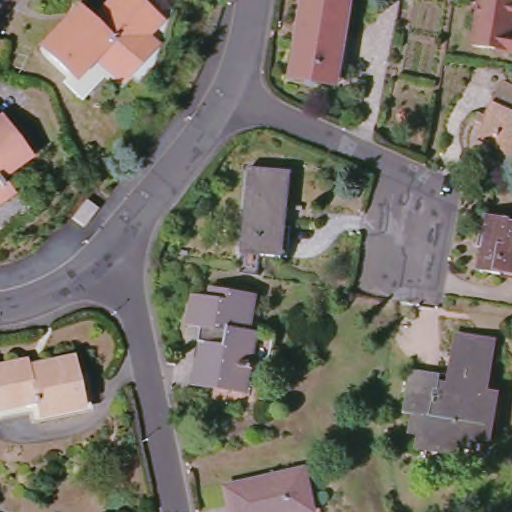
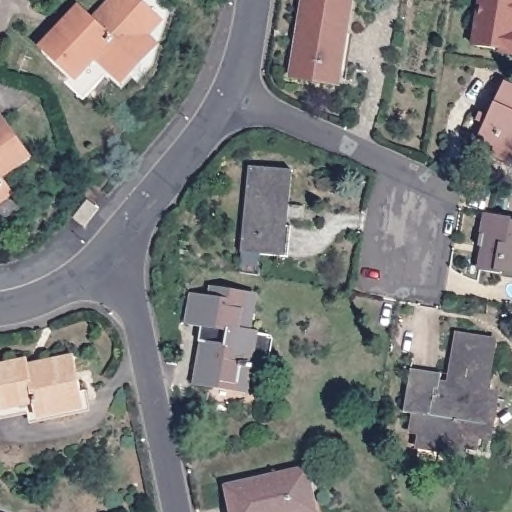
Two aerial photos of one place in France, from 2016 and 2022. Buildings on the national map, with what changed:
unchanged [(113,77),(108,72),(90,55),(80,67),(75,63),(66,72),(62,68),(60,71),(40,52),(42,49),(38,45),(63,19),(67,22),(77,12),(90,25),(114,0),(128,0),(140,11),(138,13),(146,21),(132,36),(137,41),(143,46),(113,77)]
unchanged [(291,77),(294,61),(304,0),(352,0),(341,69),(339,84),(291,77)]
unchanged [(478,51),(487,0),(512,0),(512,56),(478,51)]
unchanged [(491,155),(495,147),(478,139),(505,82),(512,85),(512,165),(491,155)]
unchanged [(14,146),(19,154),(0,167),(0,121),(16,144),(14,146)]
unchanged [(288,170),(283,226),(291,226),(289,257),(242,253),(250,167),(288,170)]
unchanged [(0,190),(0,186),(2,189),(0,190)]
unchanged [(99,209),(85,227),(74,217),(87,200),(99,209)]
unchanged [(512,218),(512,272),(505,271),(505,274),(482,271),(486,247),(480,247),(482,235),(484,235),(487,214),(512,218)]
unchanged [(210,302),(211,293),(256,301),(250,337),(257,337),(248,392),(196,383),(202,346),(210,347),(212,332),(187,327),(191,300),(210,302)]
unchanged [(442,373),(440,388),(450,390),(458,335),(495,341),(492,356),(495,356),(489,396),(494,397),(487,434),(477,432),(475,447),(462,445),(461,450),(421,442),(423,428),(415,427),(416,414),(405,412),(411,369),(442,373)]
unchanged [(28,366),(70,358),(75,382),(80,381),(85,407),(37,417),(35,402),(0,409),(0,366),(27,361),(28,366)]
unchanged [(262,487),(270,486),(270,481),(307,472),(315,512),(234,512),(228,490),(260,482),(262,487)]

